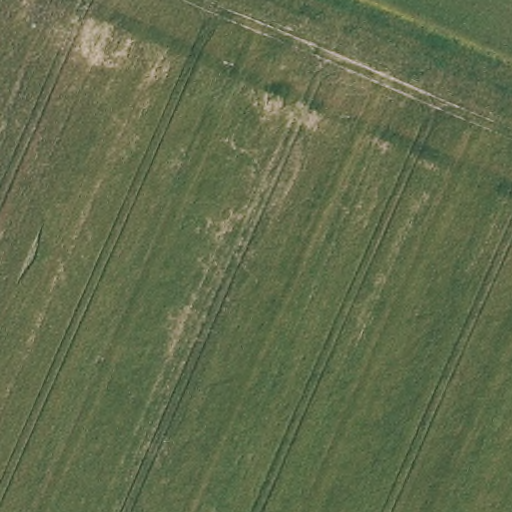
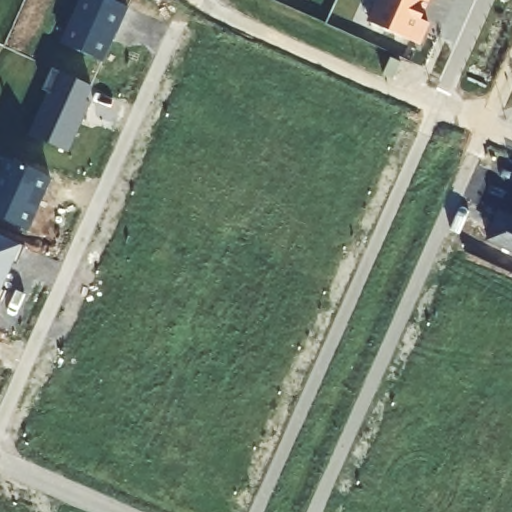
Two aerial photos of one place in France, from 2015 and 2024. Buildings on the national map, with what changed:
new [(80,0),(111,0),(128,8),(103,62),(60,42),(80,0)]
new [(417,18),(426,22),(417,43),(368,21),(377,0),(424,0),(417,18)]
new [(85,102),(91,103),(68,152),(30,135),(58,72),(92,87),(85,102)]
new [(5,158),(52,180),(29,231),(0,218),(0,168),(5,158)]
new [(499,210),(512,215),(512,252),(485,241),(499,210)]
new [(22,246),(25,247),(16,263),(15,262),(1,292),(4,292),(0,300),(0,236),(22,246)]

